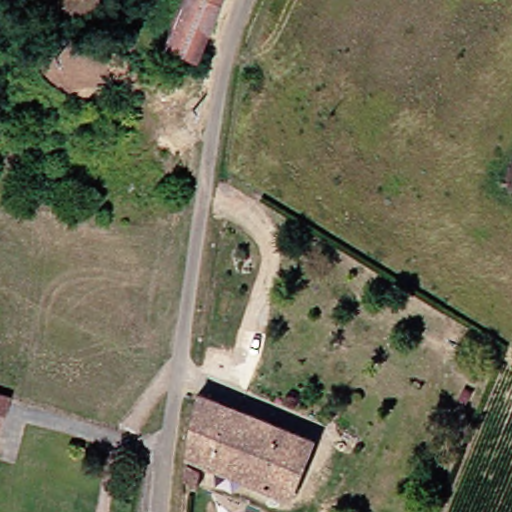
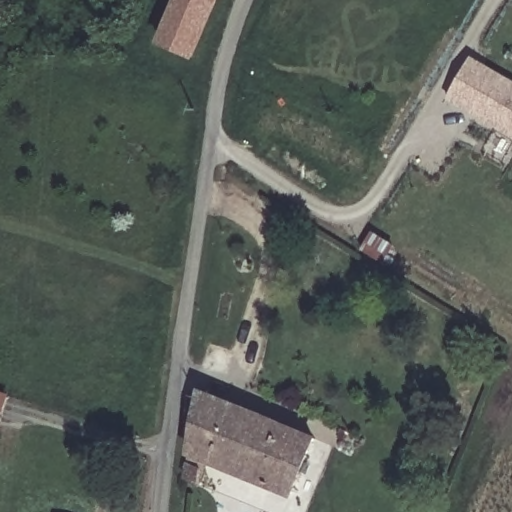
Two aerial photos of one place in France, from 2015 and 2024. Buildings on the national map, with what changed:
unchanged [(218,0),(217,3),(196,55),(161,41),(177,0),(218,0)]
new [(512,139),(446,99),(470,60),(512,86),(512,139)]
unchanged [(1,424),(0,424),(0,387),(9,390),(1,424)]
unchanged [(196,456),(208,392),(214,393),(314,431),(294,494),(196,456)]
unchanged [(195,466),(210,472),(204,487),(190,481),(195,466)]

